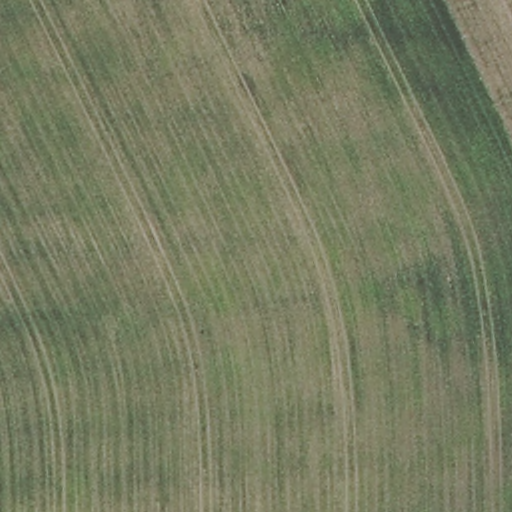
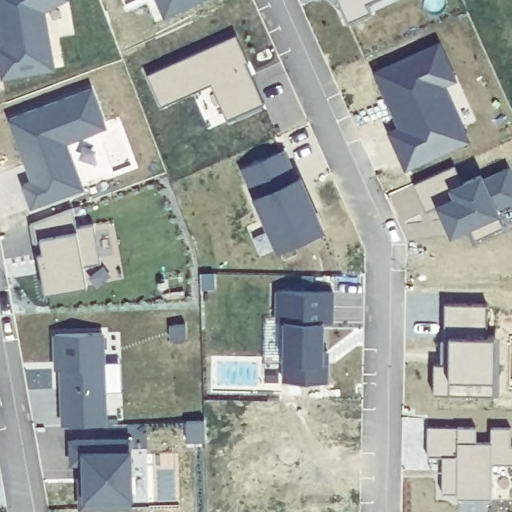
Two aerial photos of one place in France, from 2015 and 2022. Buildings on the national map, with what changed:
new [(54,71),(1,81),(0,76),(0,0),(68,0),(44,14),(54,71)]
new [(154,0),(208,0),(163,21),(154,0)]
new [(371,16),(347,26),(336,0),(385,0),(366,7),(371,16)]
new [(236,37),(249,63),(245,64),(263,105),(225,122),(212,86),(160,110),(146,77),(236,37)]
new [(441,45),(458,84),(446,89),(470,145),(405,174),(387,135),(398,131),(373,75),(441,45)]
new [(92,90),(107,131),(68,147),(83,192),(30,212),(22,186),(30,184),(8,121),(92,90)]
new [(286,151),(325,236),(276,258),(241,171),(286,151)]
new [(483,181),(510,169),(512,173),(512,207),(497,214),(500,220),(451,242),(436,210),(452,203),(449,193),(481,178),(483,181)]
new [(72,210),(75,229),(95,228),(100,267),(81,270),(85,291),(43,297),(31,226),(72,210)]
new [(215,274),(215,290),(200,290),(199,274),(215,274)]
new [(334,295),(333,326),(322,326),(323,368),(327,368),(327,385),(282,384),(282,347),(276,346),(275,292),(334,295)]
new [(486,305),(486,344),(495,345),(495,397),(433,397),(432,368),(447,368),(449,341),(441,341),(443,305),(486,305)]
new [(185,326),(186,341),(169,343),(170,326),(185,326)]
new [(103,339),(108,428),(62,428),(60,373),(55,373),(55,337),(103,339)]
new [(203,423),(204,444),(186,443),(185,423),(203,423)]
new [(475,445),(490,445),(491,429),(510,430),(510,448),(512,448),(512,467),(492,468),(491,502),(457,500),(457,497),(441,496),(442,459),(427,458),(425,429),(477,430),(475,445)]
new [(128,442),(127,455),(130,455),(131,512),(81,512),(80,469),(67,469),(67,441),(128,442)]

